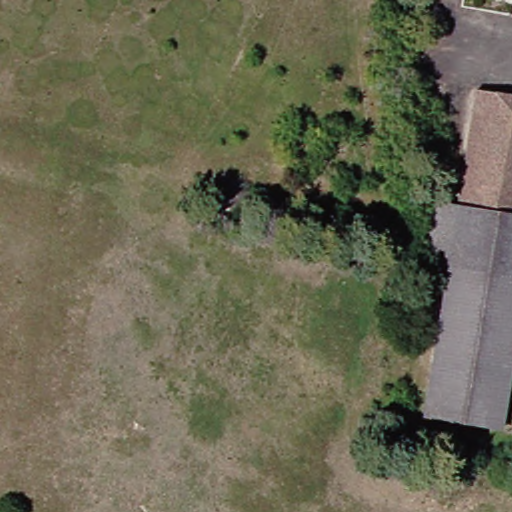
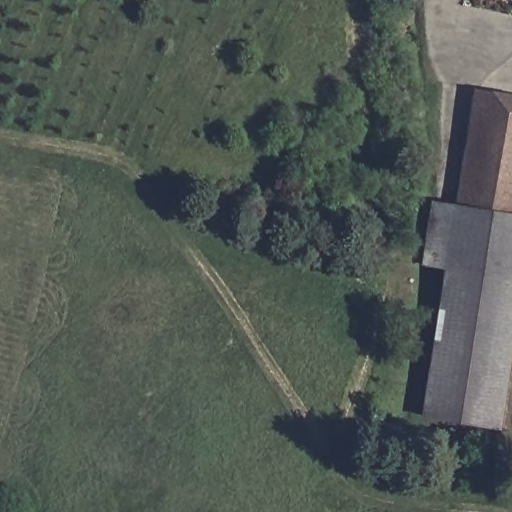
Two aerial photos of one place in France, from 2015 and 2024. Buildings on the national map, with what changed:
unchanged [(489,91),(509,95),(512,95),(512,216),(469,209),(489,91)]
unchanged [(437,418),(457,265),(433,262),(440,205),(469,209),(512,216),(512,428),(437,418)]

